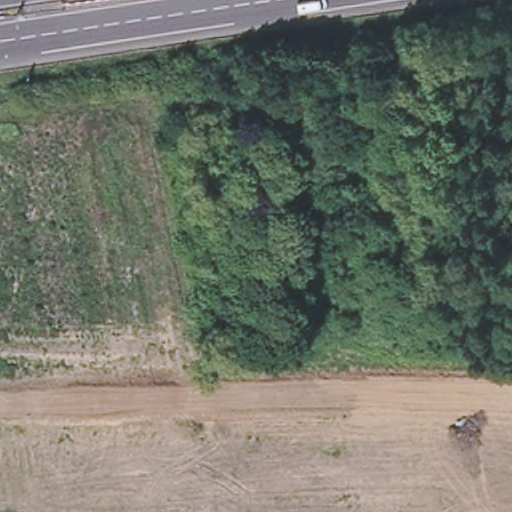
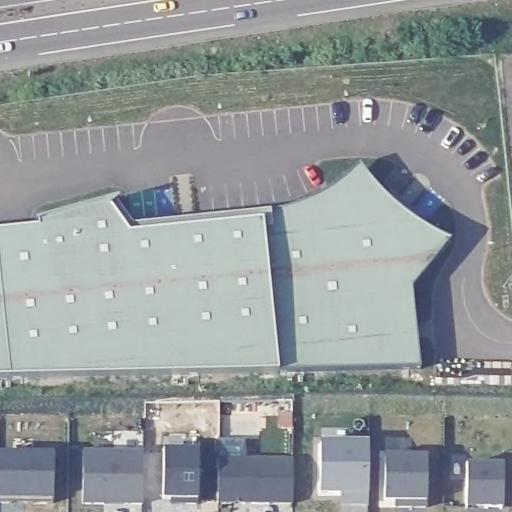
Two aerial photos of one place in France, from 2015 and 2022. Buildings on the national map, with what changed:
new [(35,222),(114,200),(134,225),(267,214),(284,211),(302,205),(322,194),(339,183),(351,173),(359,164),(367,176),(381,192),(396,206),(417,222),(436,233),(450,239),(411,288),(419,367),(277,371),(0,378),(0,233),(37,229),(35,222)]
new [(368,442),(368,494),(367,506),(337,506),(337,494),(318,494),(321,441),(368,442)]
new [(53,496),(0,496),(0,448),(56,449),(53,496)]
new [(430,450),(429,496),(387,495),(386,450),(430,450)]
new [(163,503),(164,454),(199,454),(198,508),(182,508),(171,508),(171,503),(163,503)]
new [(83,509),(84,456),(144,457),(143,510),(126,509),(105,509),(83,509)]
new [(219,462),(293,463),(292,508),(242,507),(242,504),(236,504),(236,507),(218,507),(219,462)]
new [(466,469),(503,469),(503,512),(466,512),(466,469)]

